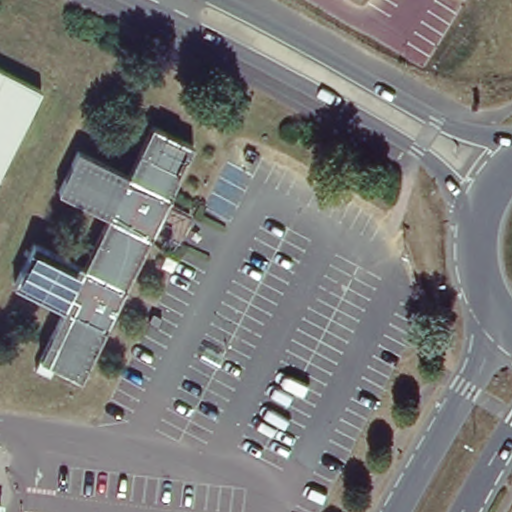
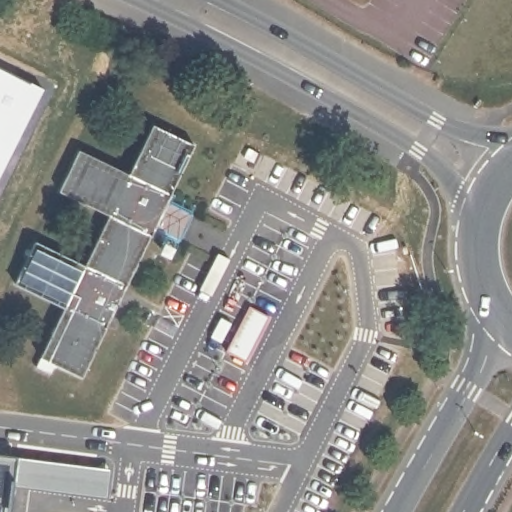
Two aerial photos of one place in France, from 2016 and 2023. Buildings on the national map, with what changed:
unchanged [(0,171),(0,70),(39,89),(0,171)]
unchanged [(191,147),(167,199),(150,239),(86,380),(42,359),(65,311),(17,289),(35,250),(82,271),(107,217),(61,196),(78,157),(126,178),(149,127),(191,147)]
unchanged [(190,209),(172,249),(150,239),(167,199),(190,209)]
new [(0,504),(0,448),(8,449),(0,504)]
new [(105,497),(9,487),(7,505),(0,504),(0,457),(110,471),(105,497)]

